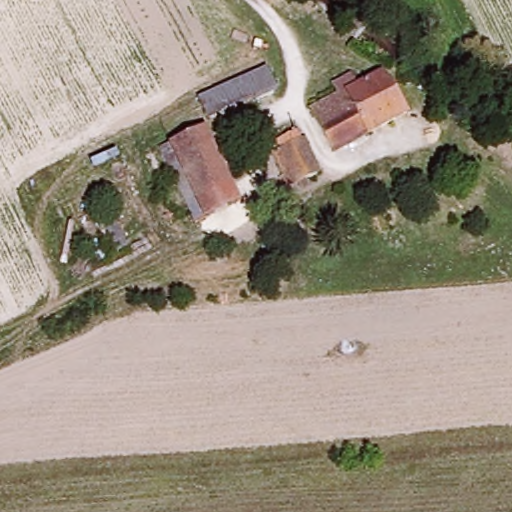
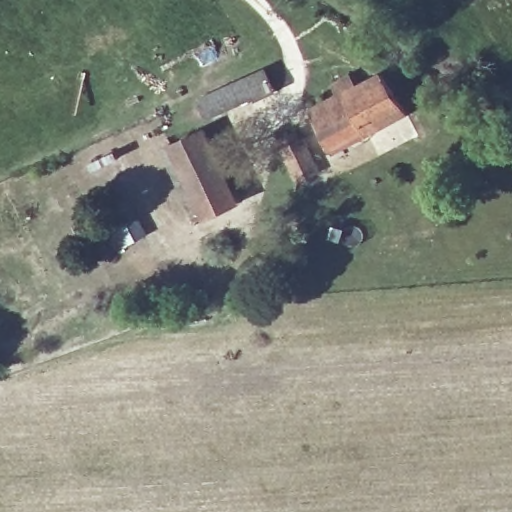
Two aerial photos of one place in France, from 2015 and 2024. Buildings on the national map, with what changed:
unchanged [(200,98),(263,71),(271,89),(208,118),(200,98)]
unchanged [(403,116),(329,150),(309,110),(382,75),(403,116)]
unchanged [(204,217),(170,148),(203,132),(237,201),(204,217)]
unchanged [(297,185),(278,142),(294,135),(303,140),(319,175),(297,185)]

